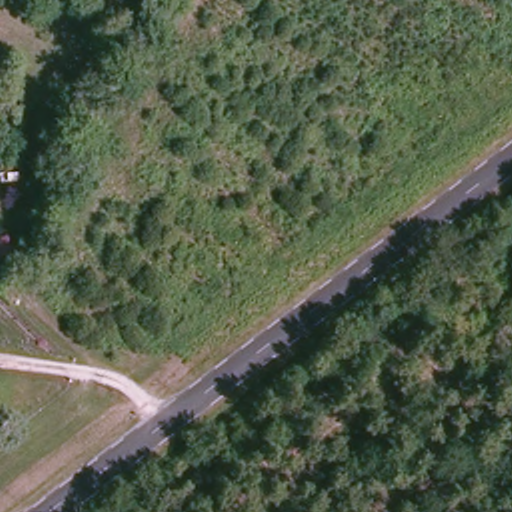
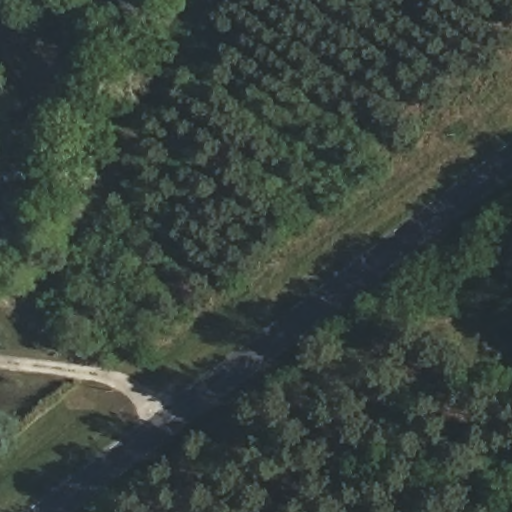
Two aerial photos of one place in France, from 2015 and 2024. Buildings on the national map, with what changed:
[]

